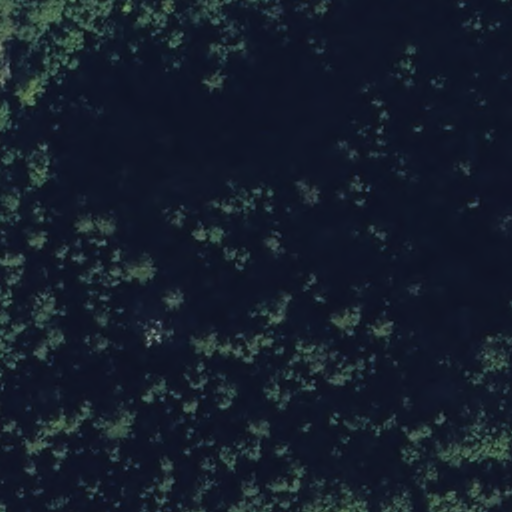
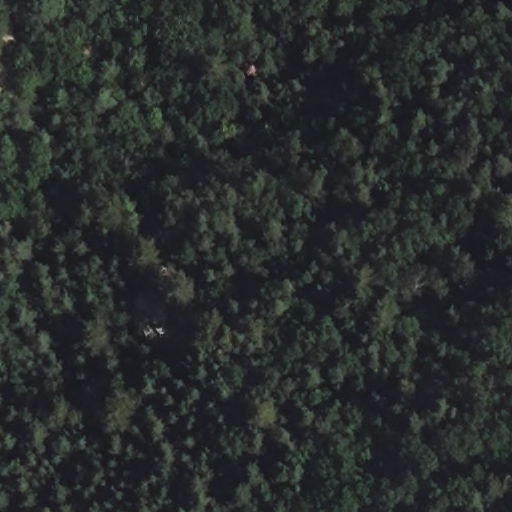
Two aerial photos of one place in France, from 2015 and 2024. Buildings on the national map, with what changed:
[]

